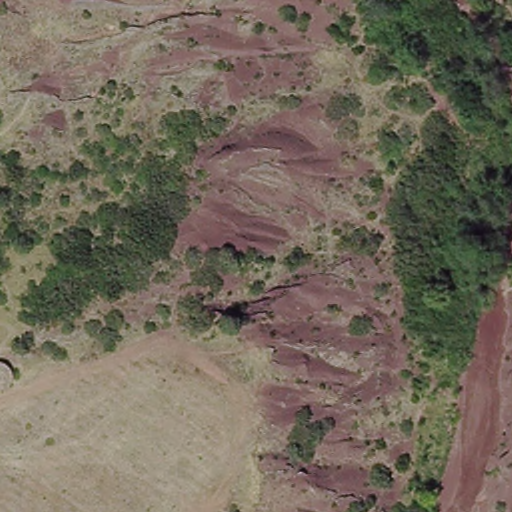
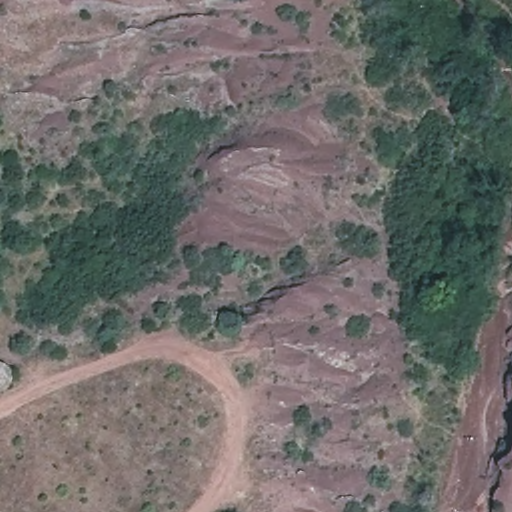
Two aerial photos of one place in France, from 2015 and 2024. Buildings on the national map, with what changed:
unchanged [(0,391),(0,364),(8,368),(11,374),(10,383),(5,389),(0,391)]

